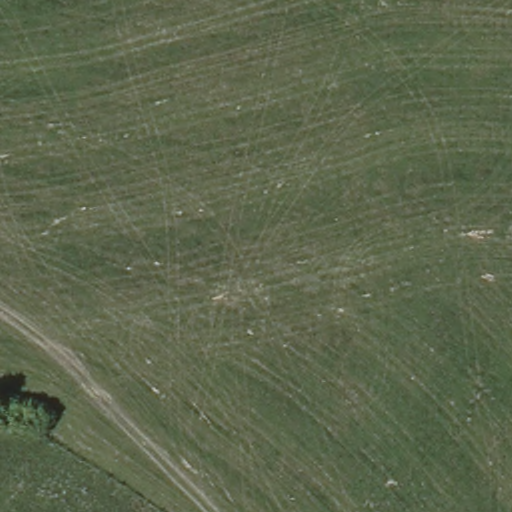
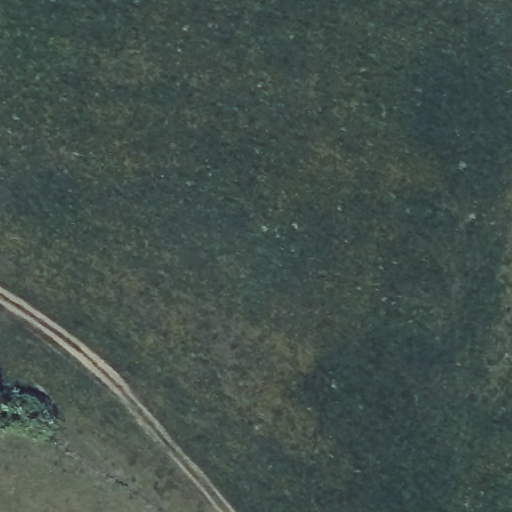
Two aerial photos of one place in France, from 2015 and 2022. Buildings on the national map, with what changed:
[]

